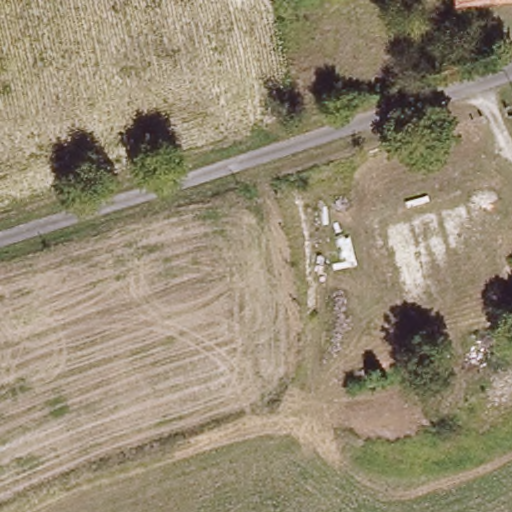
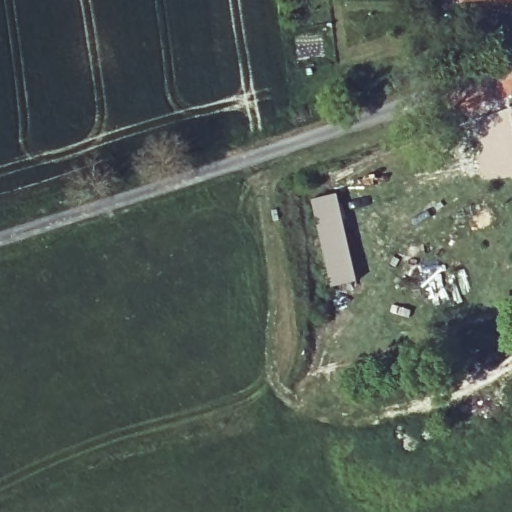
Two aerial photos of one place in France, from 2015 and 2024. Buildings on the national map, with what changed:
new [(312,200),(335,195),(356,281),(330,286),(312,200)]

